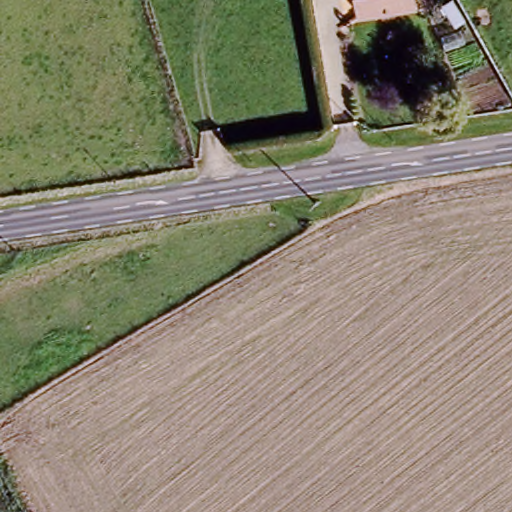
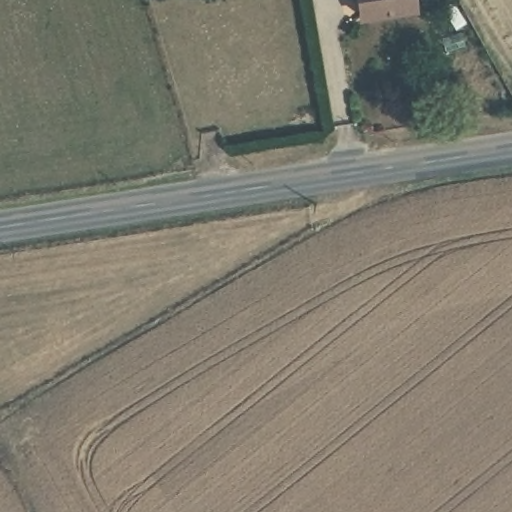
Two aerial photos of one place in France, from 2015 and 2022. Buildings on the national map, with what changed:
unchanged [(418,0),(418,5),(360,15),(358,0),(418,0)]

